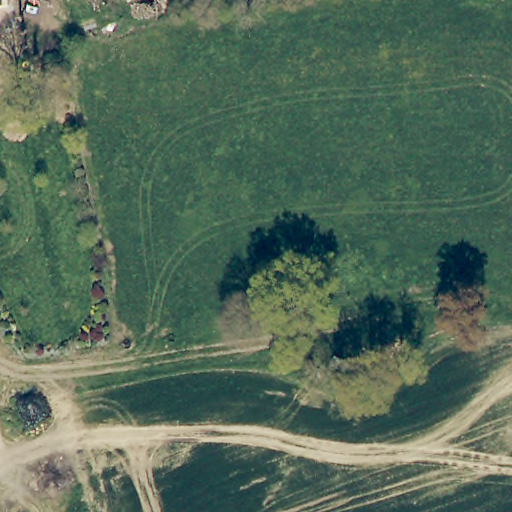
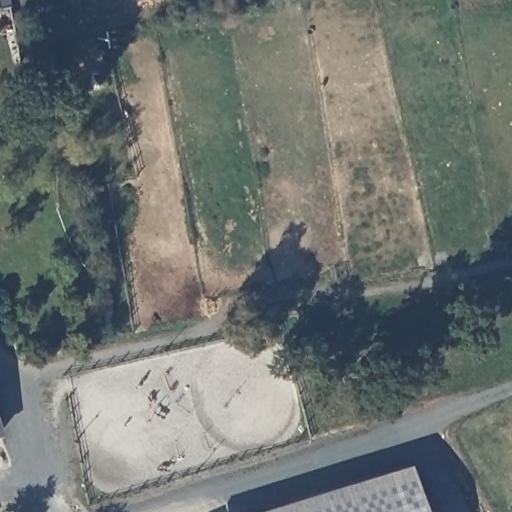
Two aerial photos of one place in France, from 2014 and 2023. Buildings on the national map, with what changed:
new [(2,436),(0,437),(0,429),(2,436)]
new [(256,512),(409,466),(424,512),(256,512)]

